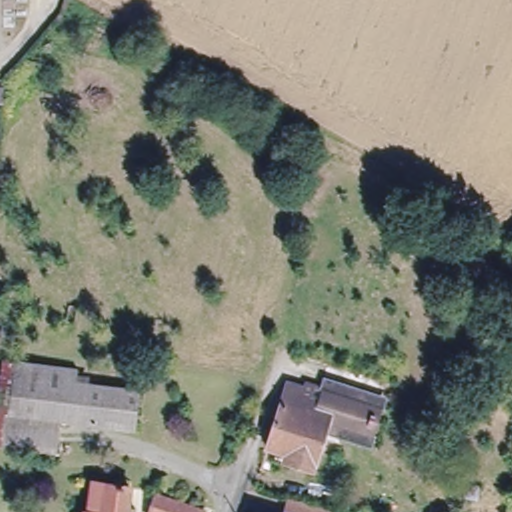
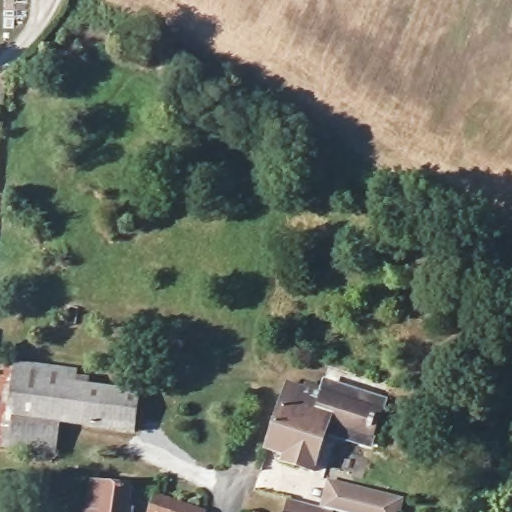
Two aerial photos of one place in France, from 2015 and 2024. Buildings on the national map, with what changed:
unchanged [(63,453),(0,445),(0,437),(3,413),(10,359),(25,361),(47,363),(41,417),(67,421),(63,453)]
unchanged [(77,367),(76,380),(146,390),(142,431),(67,421),(41,417),(47,363),(77,367)]
unchanged [(367,446),(327,432),(314,471),(294,464),(295,456),(270,448),(292,382),(308,388),(311,381),(330,387),(331,384),(334,373),(385,390),(395,393),(390,408),(379,405),(378,408),(381,411),(378,422),(374,421),(372,427),(383,430),(377,448),(367,446)]
unchanged [(135,507),(134,512),(93,512),(98,482),(132,487),(128,506),(135,507)]
new [(343,512),(329,508),(323,507),(330,483),(384,497),(399,501),(396,512),(343,512)]
unchanged [(207,509),(205,512),(152,512),(159,492),(207,509)]
unchanged [(285,512),(290,498),(323,507),(329,508),(328,512),(285,512)]

